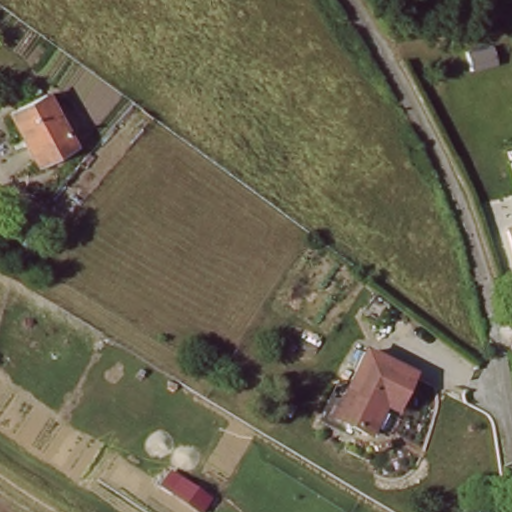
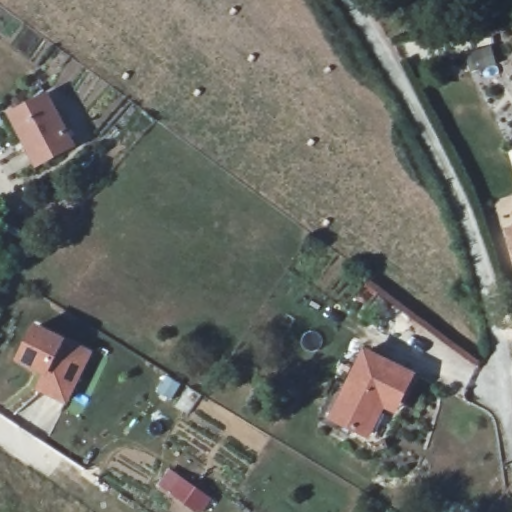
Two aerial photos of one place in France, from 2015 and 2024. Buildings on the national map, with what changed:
unchanged [(68,137),(73,150),(58,157),(38,165),(14,110),(50,95),(68,137)]
unchanged [(512,231),(512,246),(507,233),(512,231)]
new [(37,323),(95,350),(69,405),(38,390),(45,375),(18,361),(37,323)]
unchanged [(322,421),(342,378),(354,383),(371,346),(419,370),(404,400),(400,409),(389,404),(374,434),(359,426),(355,436),(322,421)]

